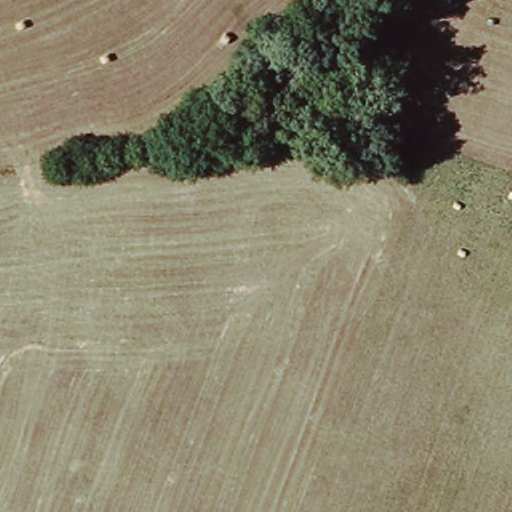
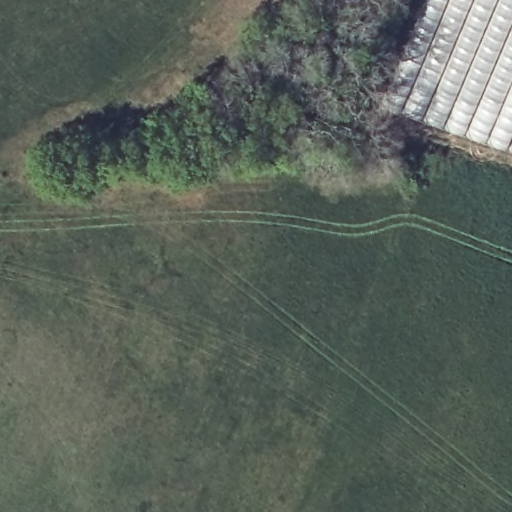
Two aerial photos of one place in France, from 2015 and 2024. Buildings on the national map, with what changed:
new [(405,45),(425,0),(448,0),(419,70),(402,99),(397,97),(393,106),(384,103),(385,100),(405,45)]
new [(419,70),(448,0),(472,0),(464,18),(422,121),(399,112),(402,99),(419,70)]
new [(472,0),(512,0),(512,152),(442,129),(422,121),(464,18),(472,0)]

